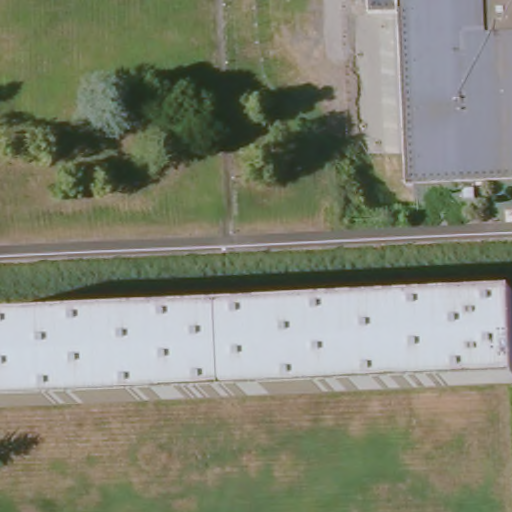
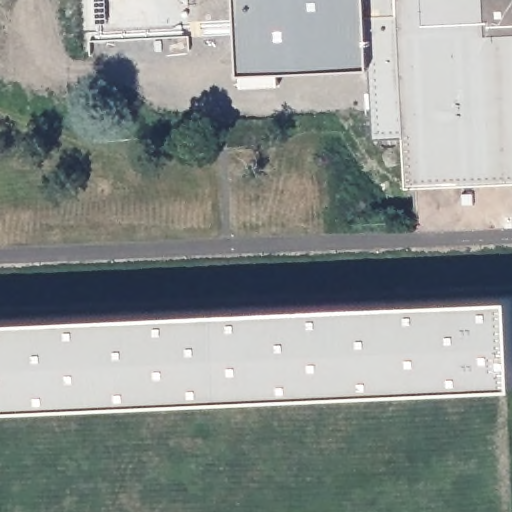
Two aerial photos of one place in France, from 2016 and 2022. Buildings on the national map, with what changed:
new [(234,79),(231,0),(361,0),(364,72),(234,79)]
unchanged [(415,178),(408,177),(398,34),(396,7),(367,9),(367,0),(512,0),(512,208),(415,213),(415,178)]
unchanged [(512,380),(0,410),(0,329),(512,299),(512,380)]

